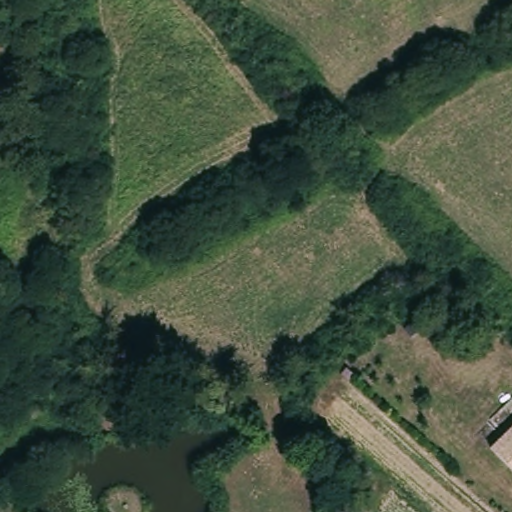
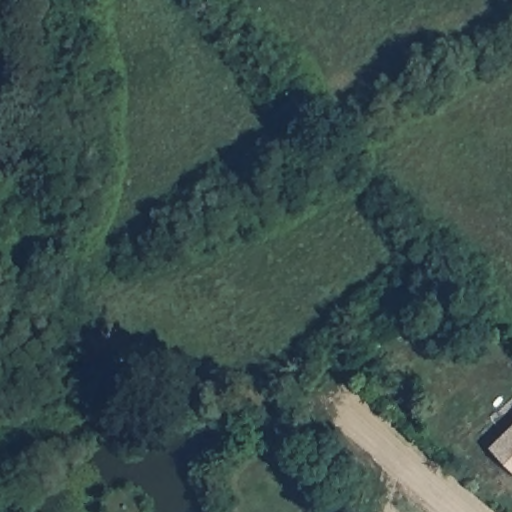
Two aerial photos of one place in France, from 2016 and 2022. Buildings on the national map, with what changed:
unchanged [(512,424),(512,462),(493,441),(512,424)]

